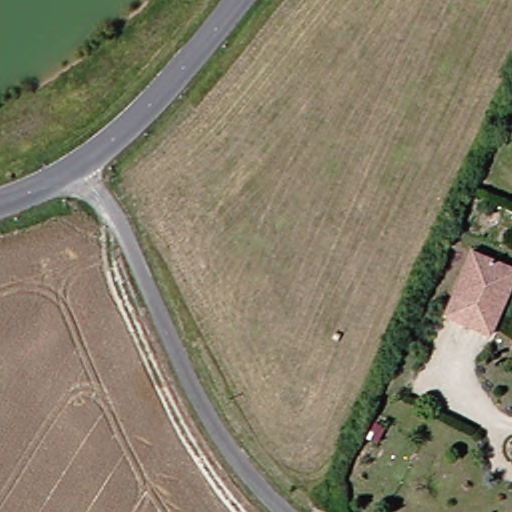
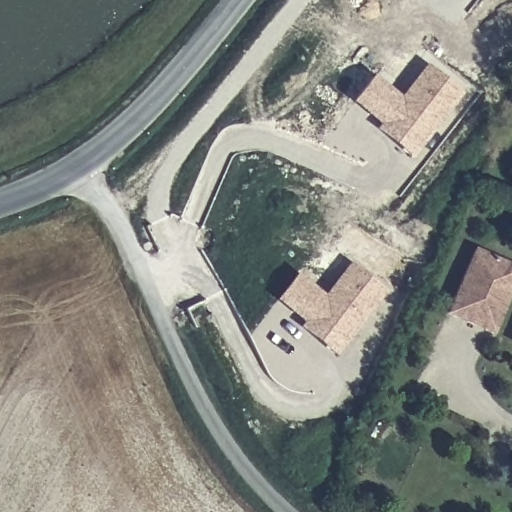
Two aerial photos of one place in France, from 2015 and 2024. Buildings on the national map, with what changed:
new [(426,64),(465,94),(411,159),(375,130),(379,123),(350,103),(373,74),(400,97),(426,64)]
unchanged [(489,334),(445,311),(473,249),(512,267),(512,286),(489,334)]
new [(336,356),(300,328),(302,323),(275,301),(297,273),(324,295),(350,262),(388,291),(336,356)]

